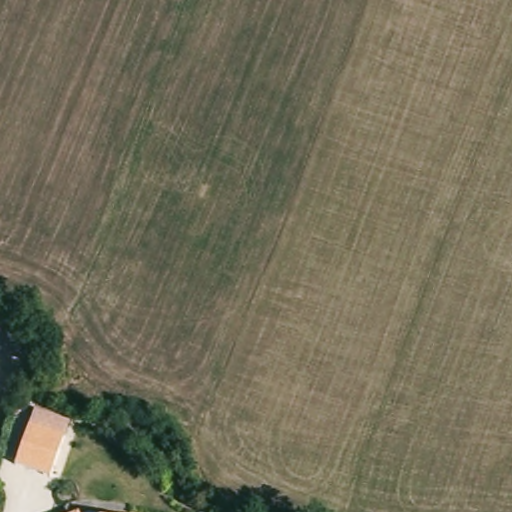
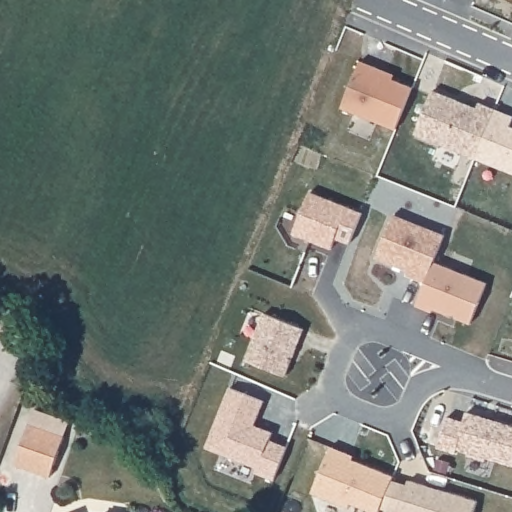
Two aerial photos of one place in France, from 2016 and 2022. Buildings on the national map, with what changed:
new [(377,67),(394,74),(392,79),(413,87),(396,130),(342,108),(361,61),(377,67)]
new [(434,91),(478,109),(480,103),(496,110),(476,159),(416,134),(434,91)]
new [(294,234),(310,191),(362,212),(350,245),(335,239),(332,250),(294,234)]
new [(394,216),(445,236),(434,263),(426,283),(407,276),(409,271),(377,258),(394,216)]
new [(434,310),(432,313),(417,307),(426,283),(434,263),(487,284),(471,325),(457,319),(449,316),(434,310)]
new [(285,376),(245,361),(264,314),(304,330),(294,353),(292,360),(285,376)]
unchanged [(35,408),(70,423),(49,477),(14,466),(35,408)]
new [(464,422),(468,412),(482,417),(495,421),(512,426),(512,465),(487,458),(486,461),(468,456),(469,452),(458,449),(456,453),(439,448),(448,417),(464,422)]
new [(348,454),(346,458),(394,477),(393,481),(382,509),(380,512),(373,512),(352,504),(349,509),(313,493),(332,447),(348,454)]
new [(409,481),(427,487),(438,490),(477,502),(474,512),(393,512),(382,509),(393,481),(408,486),(409,481)]

